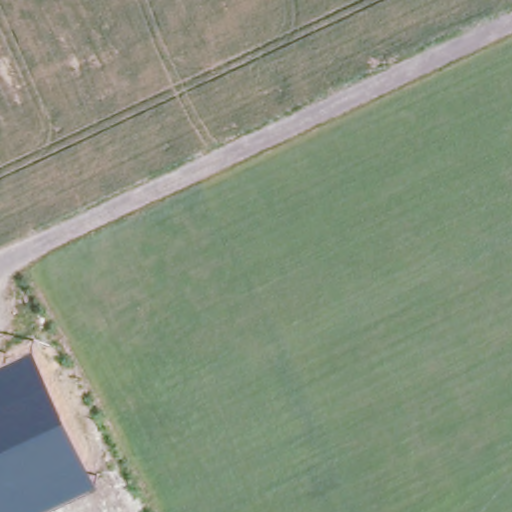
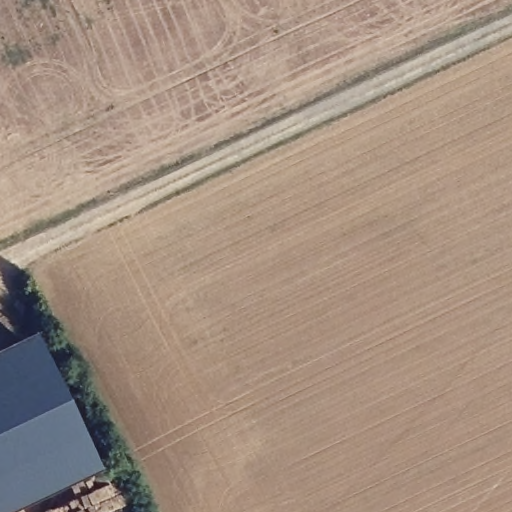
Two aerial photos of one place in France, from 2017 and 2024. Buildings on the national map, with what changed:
unchanged [(98,474),(16,512),(0,512),(0,353),(34,336),(98,474)]

